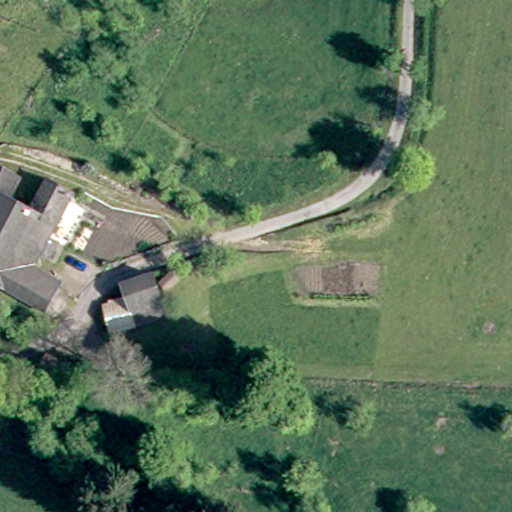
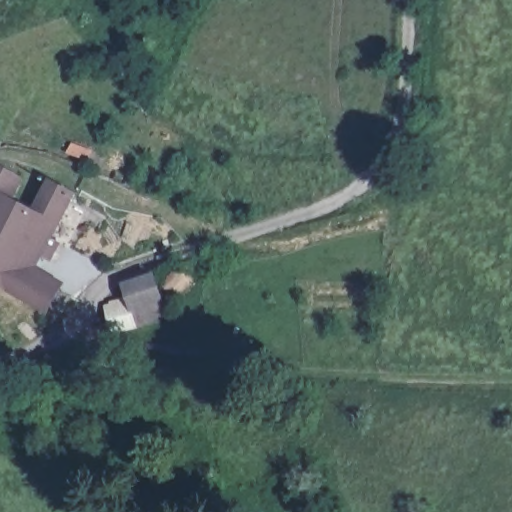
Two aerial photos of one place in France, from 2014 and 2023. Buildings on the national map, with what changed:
unchanged [(50,309),(0,279),(0,160),(25,176),(15,194),(37,206),(56,177),(80,192),(35,270),(62,287),(50,309)]
unchanged [(126,287),(155,277),(164,302),(170,318),(140,328),(103,335),(97,304),(130,297),(126,287)]
unchanged [(54,362),(75,373),(74,375),(83,382),(77,393),(67,388),(65,391),(45,379),(54,362)]

